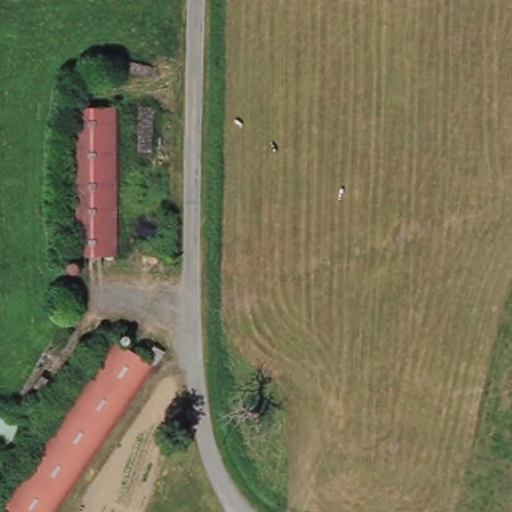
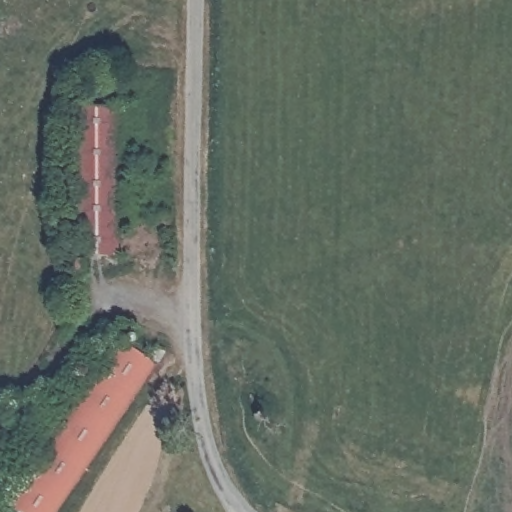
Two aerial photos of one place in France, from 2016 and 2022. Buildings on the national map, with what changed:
unchanged [(118,108),(120,257),(67,258),(68,108),(118,108)]
unchanged [(124,339),(157,365),(66,491),(33,465),(124,339)]
unchanged [(52,512),(15,512),(4,504),(33,465),(66,491),(52,512)]

